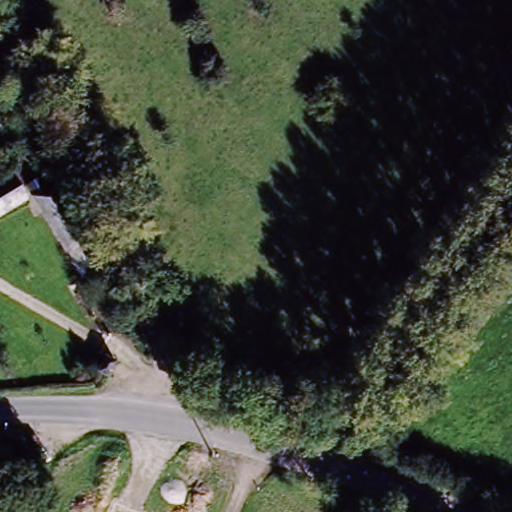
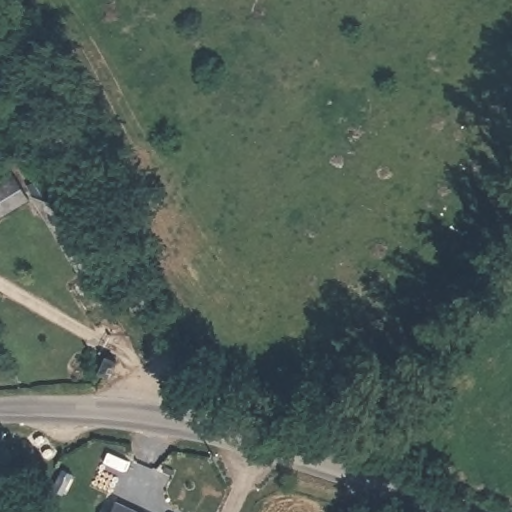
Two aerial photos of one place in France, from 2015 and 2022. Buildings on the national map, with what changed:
unchanged [(0,216),(0,187),(15,179),(27,200),(0,216)]
unchanged [(124,355),(115,366),(102,360),(112,348),(124,355)]
new [(112,512),(118,501),(140,512),(112,512)]

